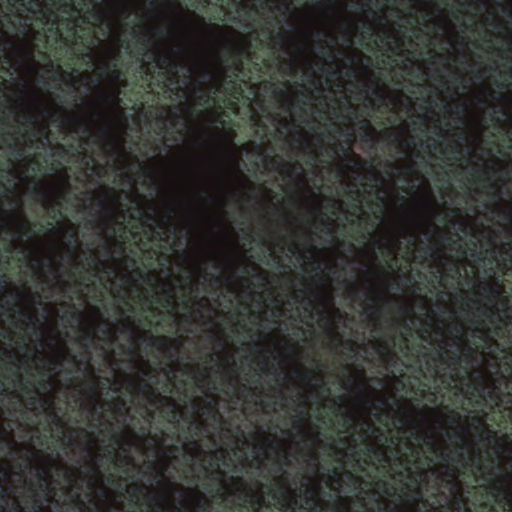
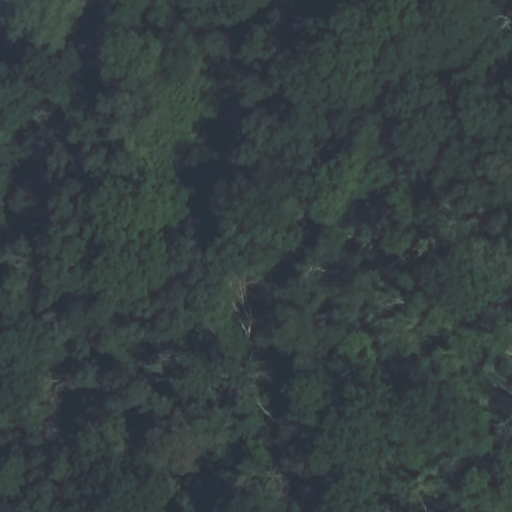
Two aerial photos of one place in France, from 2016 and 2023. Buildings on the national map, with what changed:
[]

